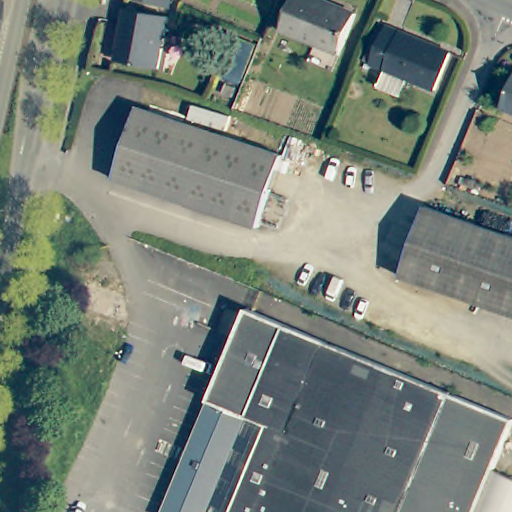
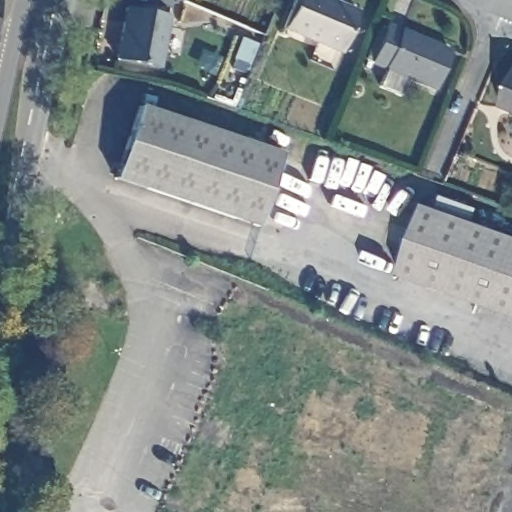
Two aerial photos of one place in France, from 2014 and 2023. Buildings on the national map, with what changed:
unchanged [(2,0),(0,8),(0,0),(2,0)]
unchanged [(337,54),(280,31),(291,0),(319,0),(352,14),(337,54)]
unchanged [(168,11),(159,62),(116,55),(126,3),(168,11)]
unchanged [(446,57),(432,94),(368,69),(383,31),(446,57)]
unchanged [(512,80),(512,112),(501,107),(512,80)]
unchanged [(276,154),(251,225),(107,177),(130,105),(276,154)]
unchanged [(512,313),(399,272),(426,202),(512,233),(512,313)]
demolished [(512,435),(479,512),(164,512),(255,303),(512,412),(512,435)]

